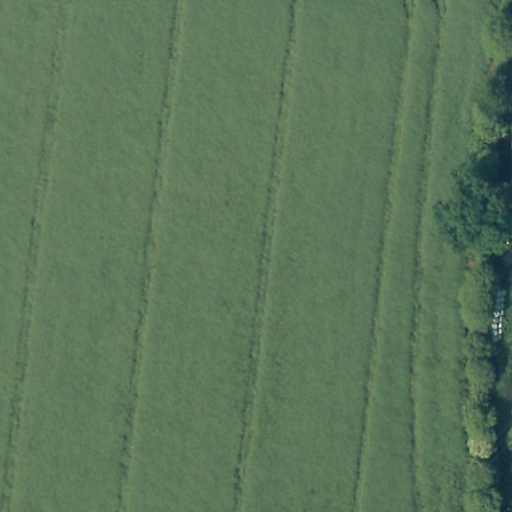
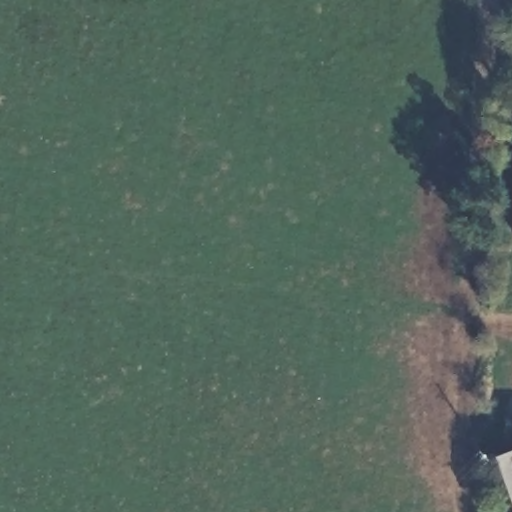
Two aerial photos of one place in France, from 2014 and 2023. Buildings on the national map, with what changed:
new [(512,453),(512,505),(495,458),(512,453)]

